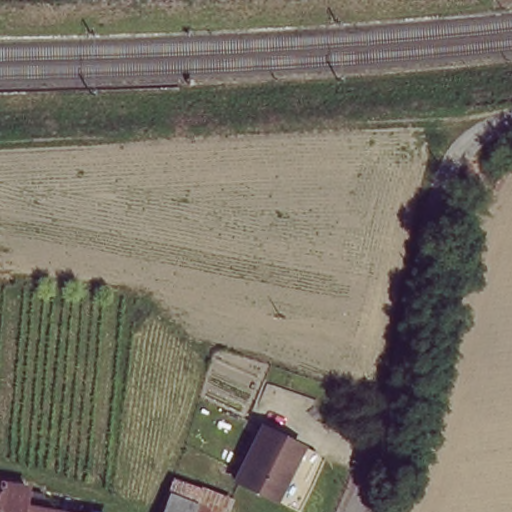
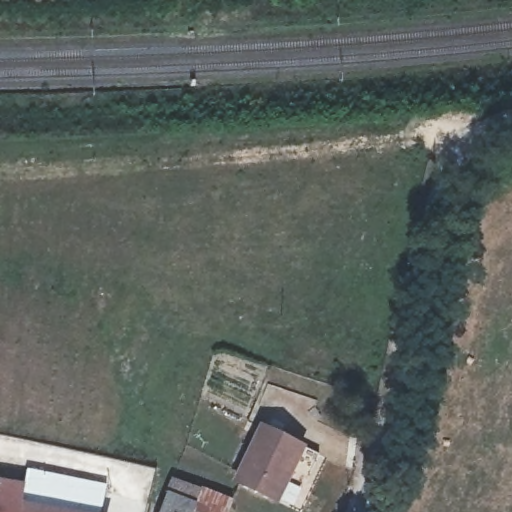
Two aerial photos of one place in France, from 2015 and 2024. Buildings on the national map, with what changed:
unchanged [(251,478),(278,433),(319,457),(286,508),(270,500),(246,487),(251,478)]
new [(107,482),(100,512),(25,512),(27,493),(28,469),(107,482)]
unchanged [(229,512),(170,512),(180,486),(231,508),(229,512)]
unchanged [(27,493),(25,512),(0,512),(0,489),(27,493)]

